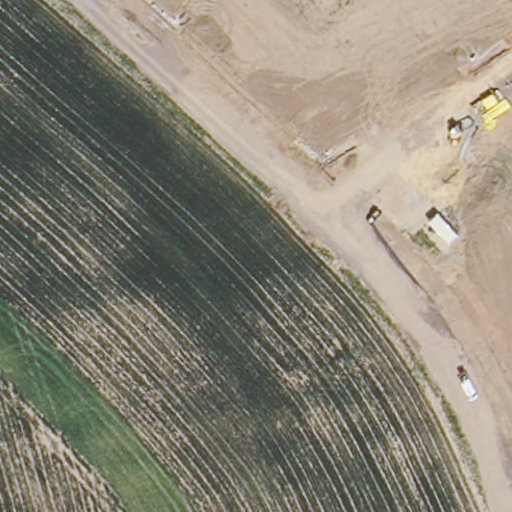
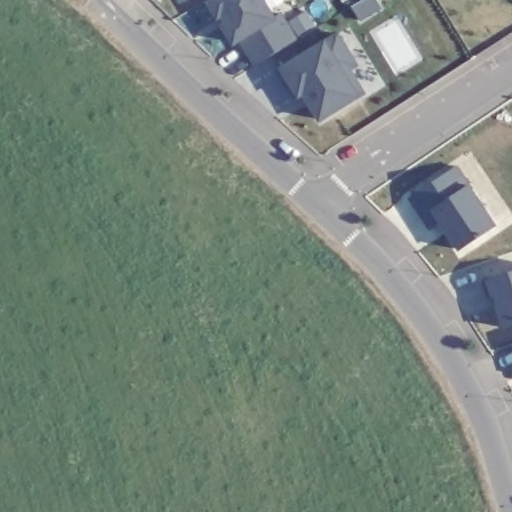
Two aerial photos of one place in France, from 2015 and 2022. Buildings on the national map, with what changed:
new [(279,18),(285,13),(289,20),(307,10),(316,25),(298,35),(299,38),(255,65),(240,42),(234,46),(207,0),(267,0),(279,18)]
new [(360,65),(350,74),(364,95),(359,97),(361,101),(336,116),(335,113),(321,122),(305,95),(300,98),(281,67),(326,39),(340,30),(360,65)]
new [(473,184),(499,225),(460,251),(441,221),(429,230),(408,198),(459,165),(473,184)]
new [(494,295),(488,298),(482,281),(488,277),(512,270),(512,326),(504,329),(494,295)]

